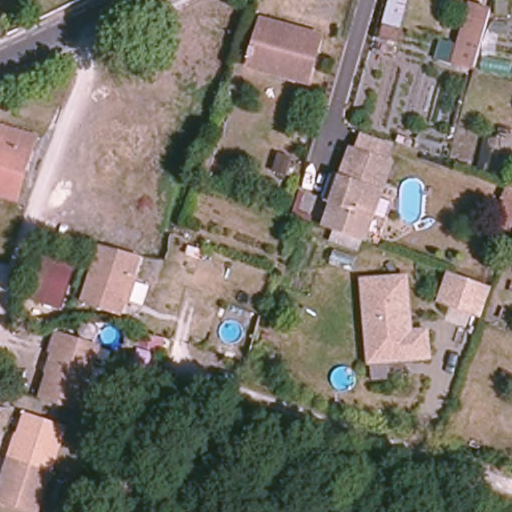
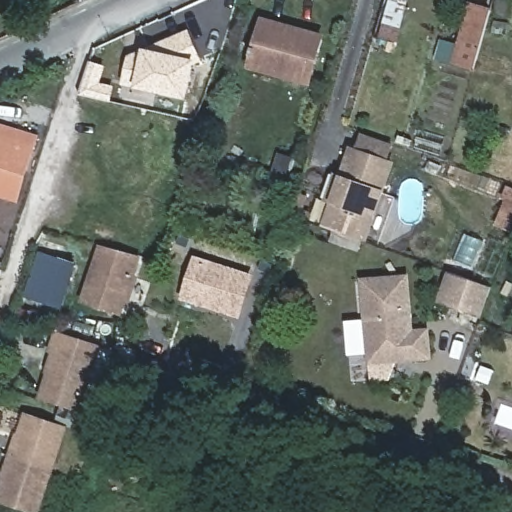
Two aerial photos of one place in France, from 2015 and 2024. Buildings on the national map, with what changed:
unchanged [(393,0),(409,0),(398,38),(383,34),(393,0)]
unchanged [(498,0),(512,0),(512,13),(498,12),(498,0)]
unchanged [(453,64),(470,4),(489,9),(472,71),(453,64)]
unchanged [(264,17),(324,35),(310,82),(251,65),(264,17)]
new [(126,60),(187,32),(199,58),(191,61),(184,96),(121,82),(126,60)]
unchanged [(14,203),(0,199),(0,128),(34,139),(14,203)]
unchanged [(360,135),(392,146),(387,161),(356,150),(360,135)]
unchanged [(407,136),(413,139),(411,144),(405,142),(407,136)]
unchanged [(365,244),(344,237),(326,230),(336,204),(326,201),(334,177),(344,181),(354,152),(393,166),(365,244)]
unchanged [(511,186),(512,186),(512,232),(498,227),(511,186)]
unchanged [(123,317),(85,305),(103,250),(141,262),(123,317)]
unchanged [(42,254),(73,263),(58,311),(28,301),(42,254)]
new [(180,300),(194,255),(255,275),(240,319),(180,300)]
unchanged [(464,313),(437,304),(448,276),(474,285),(476,286),(488,291),(478,318),(464,313)]
unchanged [(366,357),(359,283),(402,279),(407,335),(423,334),(425,360),(408,362),(367,365),(366,357)]
unchanged [(44,397),(42,396),(57,350),(53,348),(59,332),(65,333),(100,345),(79,408),(44,397)]
unchanged [(38,416),(67,426),(39,510),(13,501),(1,497),(28,413),(38,416)]

